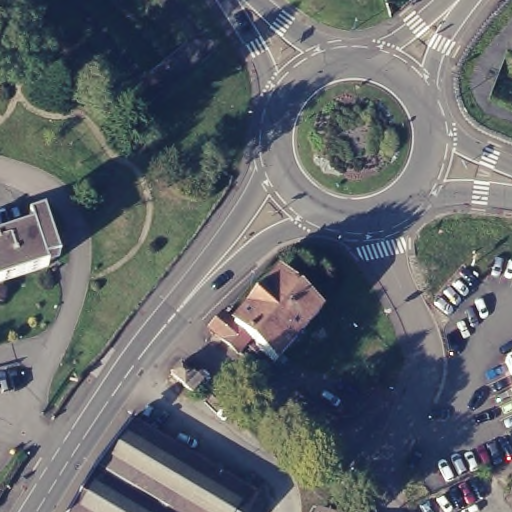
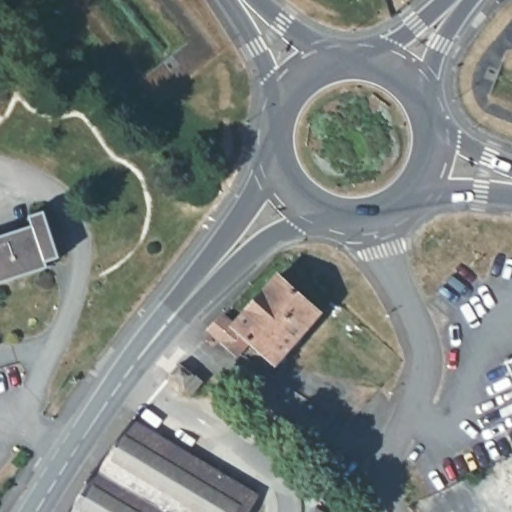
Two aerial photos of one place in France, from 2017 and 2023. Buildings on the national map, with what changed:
unchanged [(34,221),(30,211),(45,207),(59,252),(46,256),(47,261),(0,277),(0,231),(34,221)]
unchanged [(220,329),(232,316),(242,325),(287,275),(328,312),(284,362),(259,340),(247,352),(220,329)]
unchanged [(512,357),(512,383),(502,362),(512,357)]
unchanged [(191,393),(170,375),(180,364),(200,382),(191,393)]
unchanged [(98,457),(135,412),(260,486),(244,512),(66,512),(98,457)]
unchanged [(317,511),(320,512),(316,512),(317,511)]

